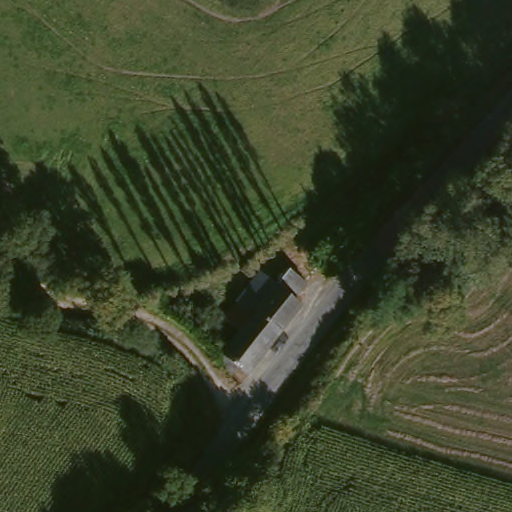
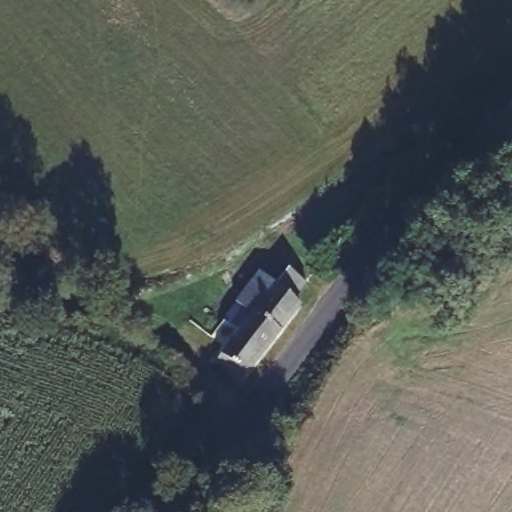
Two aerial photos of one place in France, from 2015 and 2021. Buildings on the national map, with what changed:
unchanged [(251,318),(236,305),(250,288),(246,286),(264,263),(286,274),(294,262),(313,274),(304,285),(314,291),(261,365),(250,357),(241,369),(225,356),(251,318)]

